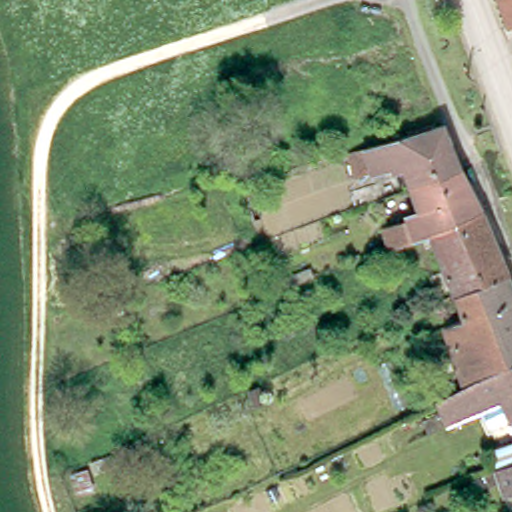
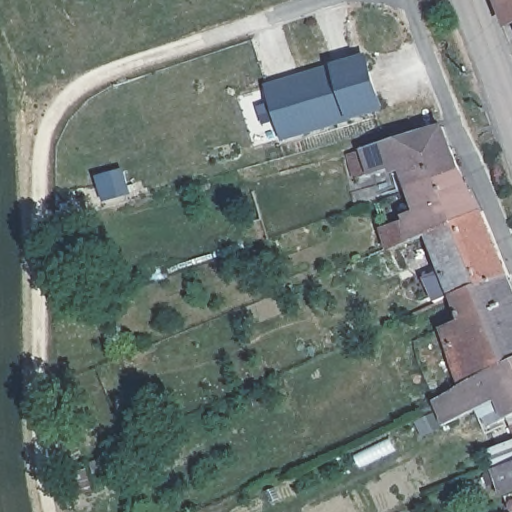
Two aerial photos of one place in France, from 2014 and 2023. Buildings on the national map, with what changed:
unchanged [(498,0),(512,0),(512,22),(507,24),(498,0)]
new [(364,56),(379,108),(350,117),(283,136),(270,94),(273,86),(334,65),(364,56)]
unchanged [(357,179),(360,178),(354,154),(447,127),(465,170),(416,187),(414,188),(406,168),(398,172),(397,167),(372,175),(373,180),(359,185),(357,179)]
unchanged [(486,211),(435,235),(394,252),(387,232),(425,216),(416,187),(465,170),(486,211)]
unchanged [(435,235),(486,211),(512,275),(458,295),(435,235)]
unchanged [(468,318),(458,295),(512,275),(512,365),(471,386),(449,327),(468,318)]
unchanged [(488,405),(452,422),(442,400),(471,386),(512,365),(512,417),(497,423),(488,405)]
unchanged [(265,402),(255,406),(250,391),(259,387),(265,402)]
unchanged [(499,471),(512,466),(512,493),(510,494),(504,481),(495,485),(490,473),(499,471)]
unchanged [(91,490),(77,494),(72,474),(86,471),(91,490)]

